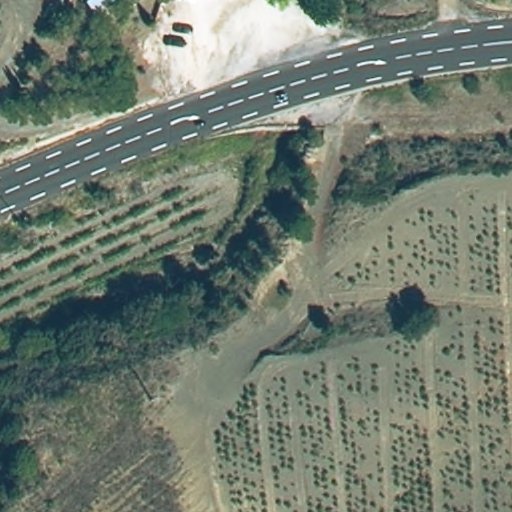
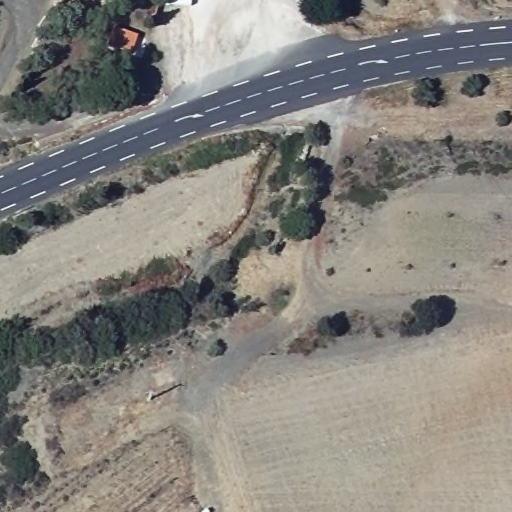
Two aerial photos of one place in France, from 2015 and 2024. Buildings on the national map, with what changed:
unchanged [(85,0),(104,0),(90,9),(85,0)]

